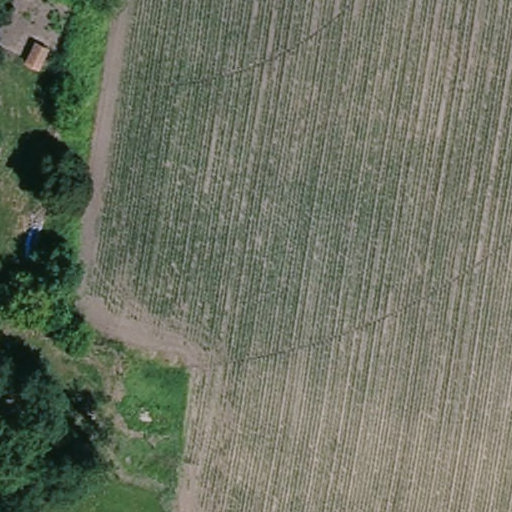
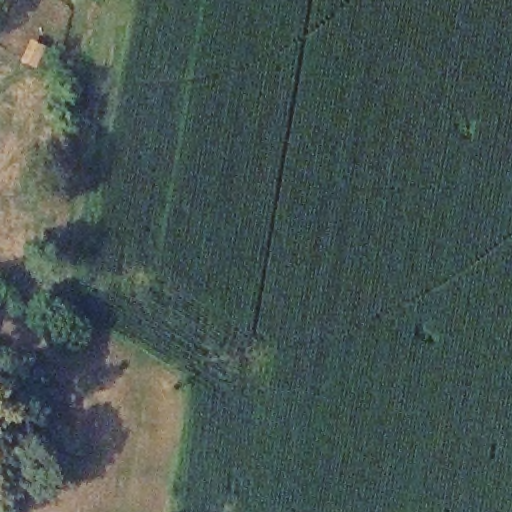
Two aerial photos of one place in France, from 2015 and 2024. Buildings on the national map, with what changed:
unchanged [(0,147),(1,148),(0,152),(0,147)]

